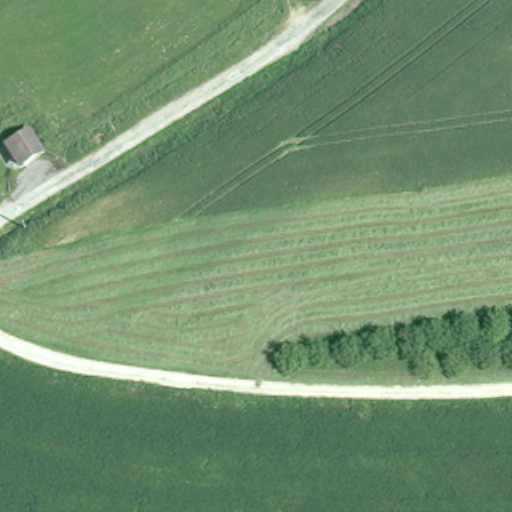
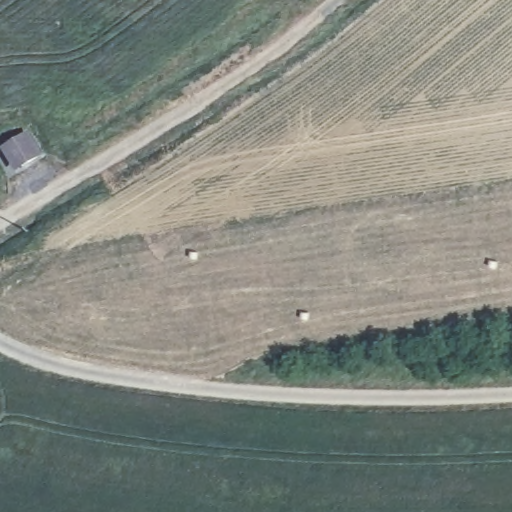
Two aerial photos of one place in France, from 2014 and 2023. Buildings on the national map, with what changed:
unchanged [(17,165),(0,138),(0,135),(28,127),(41,150),(17,165)]

